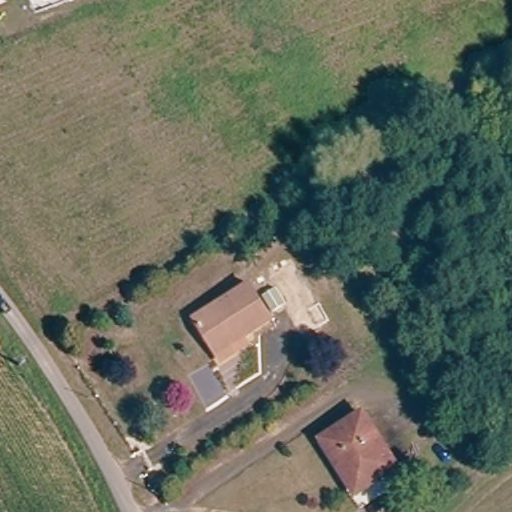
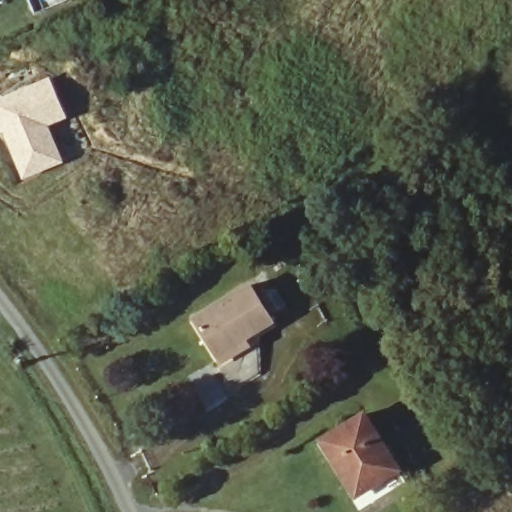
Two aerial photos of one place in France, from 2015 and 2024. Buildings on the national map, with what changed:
new [(50,126),(65,164),(24,179),(5,133),(2,134),(0,129),(0,99),(52,77),(69,119),(50,126)]
unchanged [(273,321),(214,358),(191,323),(250,285),(273,321)]
unchanged [(398,470),(357,498),(315,438),(356,410),(398,470)]

